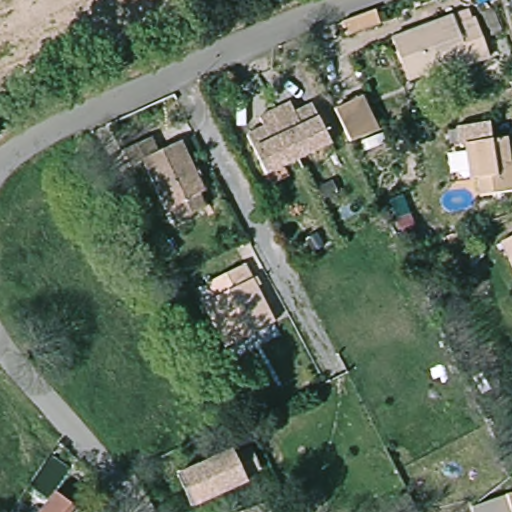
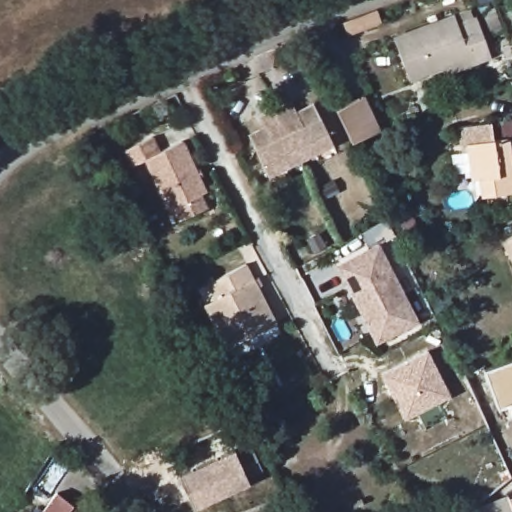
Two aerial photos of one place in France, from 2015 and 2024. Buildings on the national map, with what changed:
unchanged [(378,25),(345,38),(340,24),(372,11),(378,25)]
unchanged [(490,59),(469,66),(467,60),(406,83),(391,40),(452,16),(455,23),(475,16),(490,59)]
unchanged [(352,145),(335,113),(363,98),(380,134),(352,145)]
unchanged [(288,101),(293,111),(311,102),(330,141),(298,158),(273,108),(288,101)]
unchanged [(298,158),(266,175),(245,136),(263,126),(257,116),(273,108),(298,158)]
unchanged [(170,217),(147,166),(133,173),(125,158),(152,145),(160,160),(183,148),(207,199),(170,217)]
unchanged [(512,151),(512,201),(490,206),(485,189),(477,190),(471,154),(511,146),(512,151)]
new [(375,344),(335,265),(378,242),(417,323),(375,344)]
unchanged [(497,254),(512,246),(512,282),(497,254)]
unchanged [(235,348),(206,290),(244,269),(272,327),(235,348)]
new [(402,419),(381,373),(427,351),(449,397),(402,419)]
new [(496,407),(482,368),(512,357),(512,401),(496,407)]
unchanged [(225,459),(228,468),(249,461),(255,476),(235,483),(237,492),(184,510),(173,478),(225,459)]
unchanged [(497,505),(500,504),(503,503),(512,500),(512,512),(501,512),(497,505)]
unchanged [(79,512),(65,512),(71,505),(79,512)]

